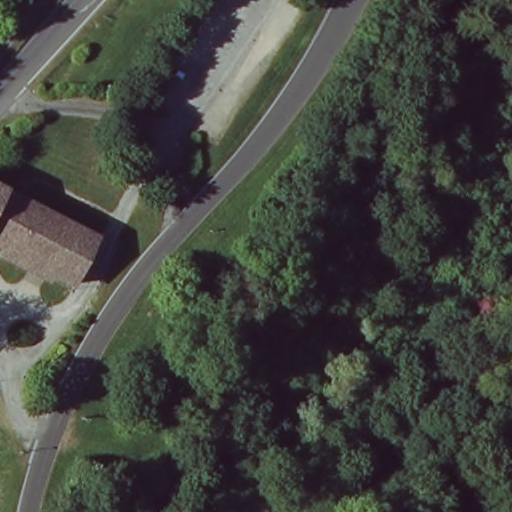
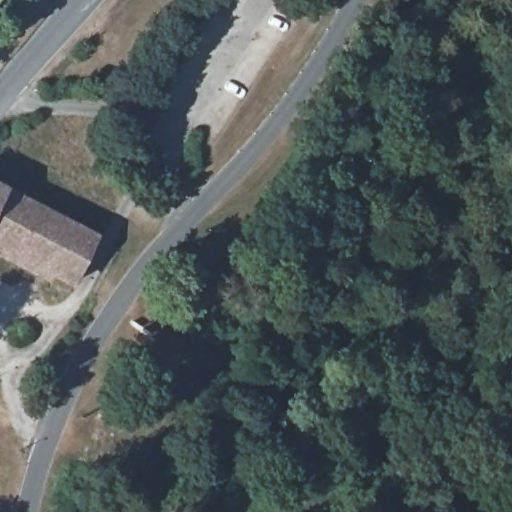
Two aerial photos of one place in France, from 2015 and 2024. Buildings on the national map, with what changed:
unchanged [(93,236),(87,249),(92,251),(89,256),(85,254),(78,268),(82,271),(79,276),(75,275),(70,283),(68,282),(0,248),(0,189),(92,235),(93,236)]

